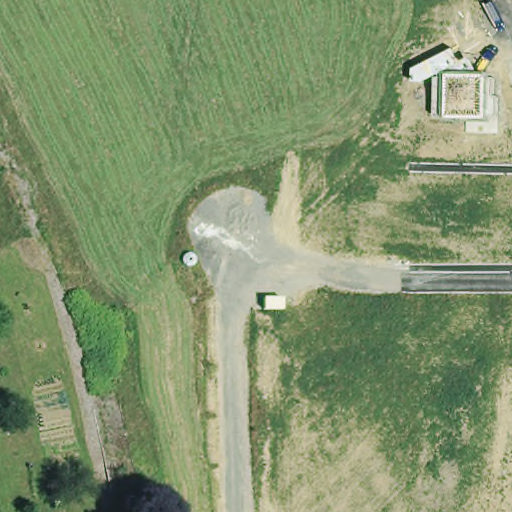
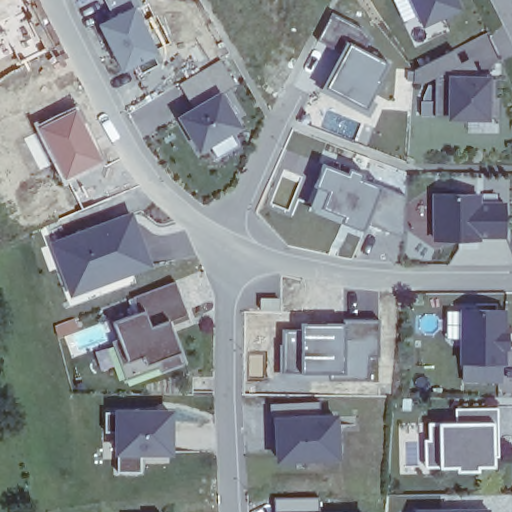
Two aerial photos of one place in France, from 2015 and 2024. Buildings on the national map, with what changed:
new [(47,48),(0,73),(0,0),(22,0),(47,48)]
new [(458,7),(425,22),(414,0),(455,0),(458,7)]
new [(122,72),(97,23),(136,4),(160,53),(122,72)]
new [(343,56),(320,41),(332,15),(371,35),(362,53),(385,67),(376,83),(380,85),(366,113),(324,90),(343,56)]
unchanged [(462,61),(471,57),(480,73),(492,73),(492,79),(495,79),(496,97),(499,97),(498,116),(491,116),(491,121),(447,120),(447,115),(435,115),(436,76),(423,83),(412,82),(412,69),(454,48),(462,61)]
new [(193,110),(178,85),(220,59),(235,87),(219,94),(241,131),(197,157),(176,119),(193,110)]
new [(37,132),(33,124),(75,104),(103,160),(62,182),(52,163),(40,169),(24,139),(37,132)]
new [(322,163),(346,171),(362,176),(381,184),(367,222),(362,232),(306,207),(322,163)]
new [(381,184),(405,193),(400,235),(367,222),(381,184)]
new [(437,240),(436,194),(478,193),(478,203),(506,202),(506,235),(478,235),(478,239),(477,239),(460,240),(437,240)]
new [(132,212),(153,269),(70,298),(50,244),(132,212)]
new [(114,322),(140,312),(134,297),(133,296),(176,280),(188,313),(170,321),(171,325),(185,361),(162,370),(160,365),(127,378),(113,341),(120,338),(114,322)]
new [(262,298),(280,298),(280,309),(262,309),(262,298)]
unchanged [(463,309),(506,309),(505,331),(509,331),(509,332),(505,332),(505,346),(508,346),(508,347),(505,347),(505,363),(502,362),(502,380),(464,380),(464,362),(462,362),(463,309)]
new [(335,330),(345,330),(345,319),(380,320),(380,356),(370,356),(370,379),(331,379),(331,372),(285,372),(285,330),(313,330),(335,330)]
new [(345,324),(345,330),(303,330),(303,323),(345,324)]
demolished [(77,346),(104,340),(135,487),(107,493),(77,346)]
new [(276,461),(273,417),(273,403),(320,401),(321,414),(337,413),(340,459),(276,461)]
unchanged [(429,422),(456,421),(456,407),(498,407),(498,439),(495,439),(495,466),(440,467),(440,466),(426,466),(425,439),(430,439),(429,422)]
new [(172,412),(172,459),(114,459),(114,412),(172,412)]
new [(272,511),(273,496),(319,495),(319,509),(367,509),(367,512),(269,512),(269,511),(272,511)]
new [(490,512),(417,512),(417,511),(490,509),(490,512)]

